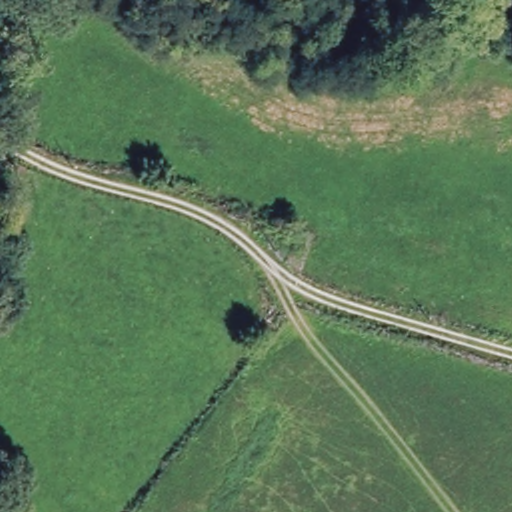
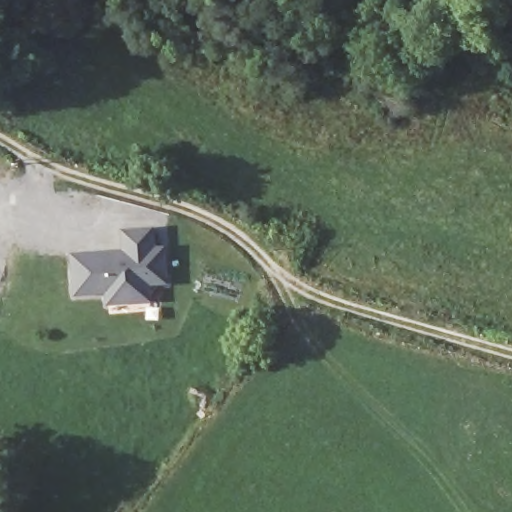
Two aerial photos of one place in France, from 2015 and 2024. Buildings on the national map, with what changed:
new [(122,248),(121,229),(154,226),(156,246),(164,246),(168,284),(150,286),(152,301),(106,305),(105,293),(74,294),(70,252),(122,248)]

